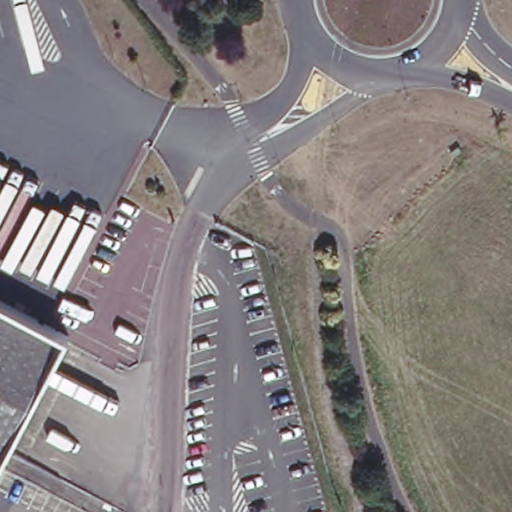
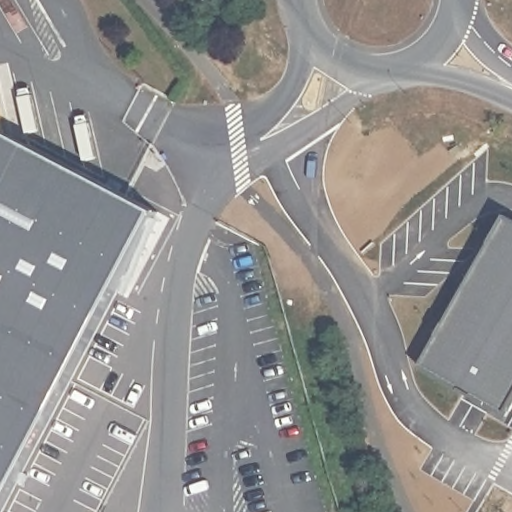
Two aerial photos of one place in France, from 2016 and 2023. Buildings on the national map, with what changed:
new [(159,213),(6,512),(0,512),(0,213),(30,147),(159,213)]
new [(511,415),(421,372),(501,219),(512,225),(512,413),(511,415)]
demolished [(0,303),(63,335),(0,458),(0,303)]

